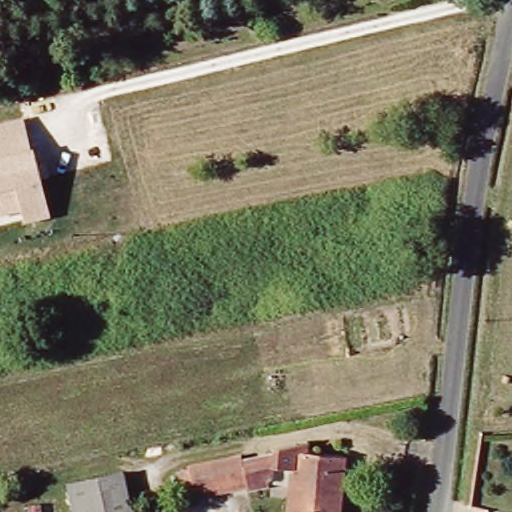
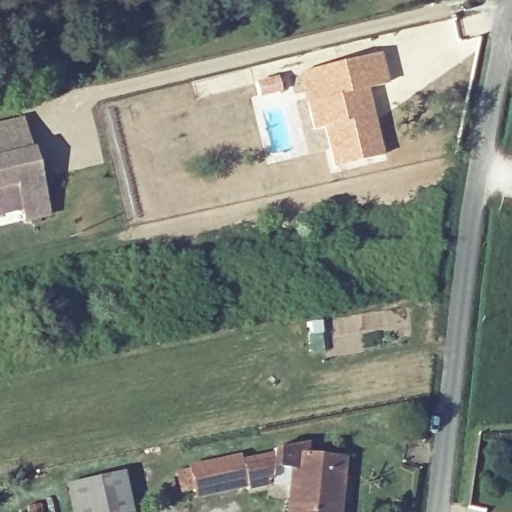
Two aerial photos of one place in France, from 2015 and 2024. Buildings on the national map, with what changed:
new [(380,52),(387,83),(367,89),(383,154),(330,169),(317,129),(312,131),(297,72),(380,52)]
unchanged [(15,185),(0,189),(0,123),(25,117),(51,215),(25,222),(15,185)]
unchanged [(246,488),(182,501),(175,466),(240,451),(242,459),(270,454),(269,445),(308,439),(308,450),(302,450),(296,512),(285,512),(287,486),(246,488)]
unchanged [(296,512),(302,450),(348,454),(342,512),(296,512)]
unchanged [(75,512),(70,484),(126,474),(133,512),(75,512)]

